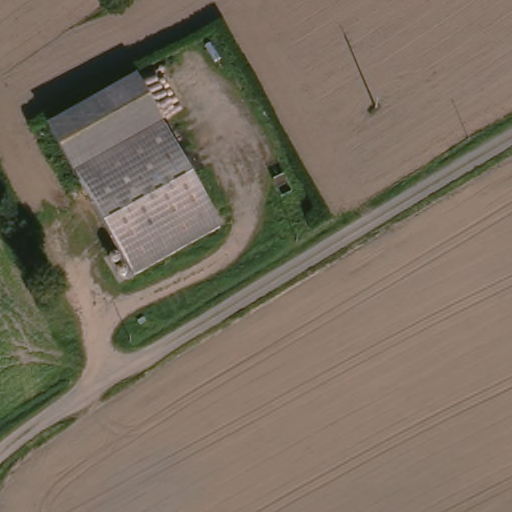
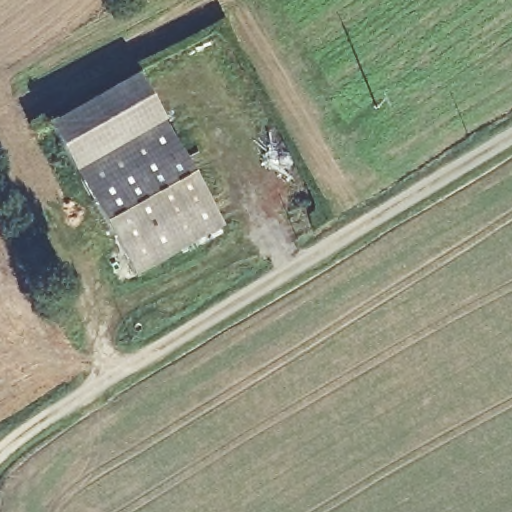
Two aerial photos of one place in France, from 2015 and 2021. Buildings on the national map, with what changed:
unchanged [(80,168),(53,123),(139,73),(165,118),(80,168)]
unchanged [(166,120),(224,222),(135,270),(80,170),(166,120)]

